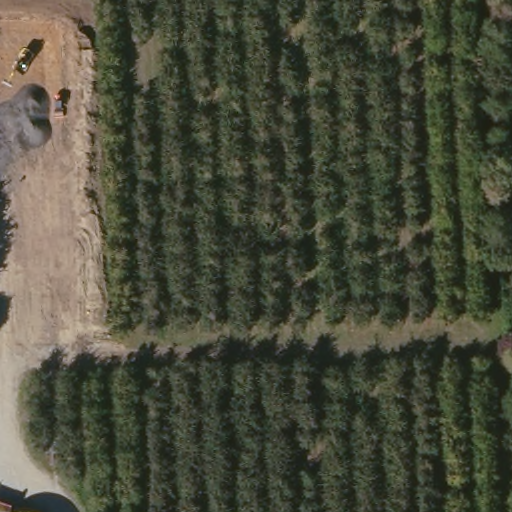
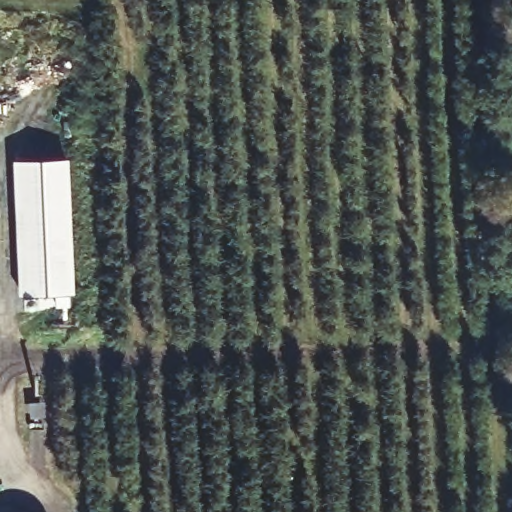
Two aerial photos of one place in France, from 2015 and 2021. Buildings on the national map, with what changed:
new [(65,162),(70,307),(55,308),(54,299),(24,299),(20,163),(65,162)]

